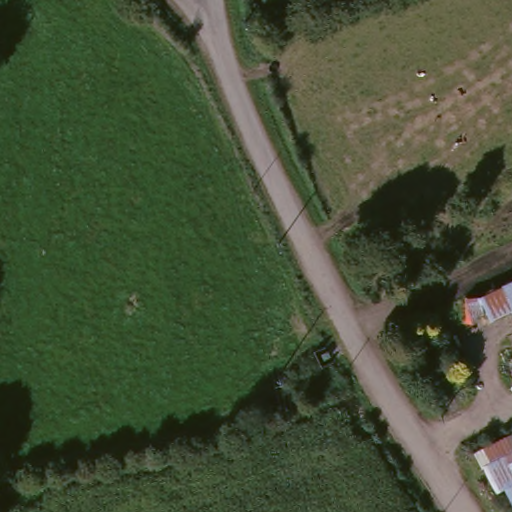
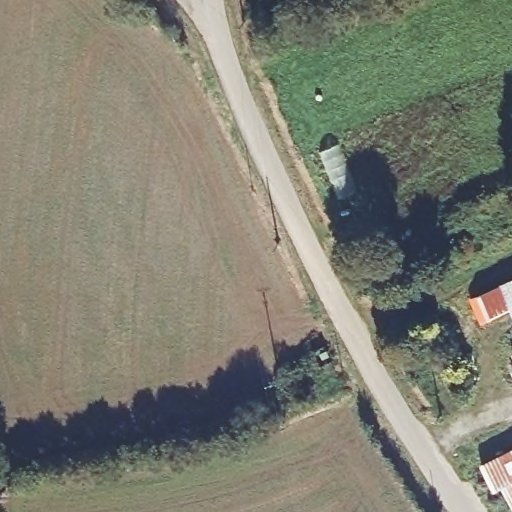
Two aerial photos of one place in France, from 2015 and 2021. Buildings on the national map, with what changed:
unchanged [(493,318),(481,292),(512,278),(512,309),(493,318)]
unchanged [(510,512),(469,449),(512,428),(512,512),(510,512)]

